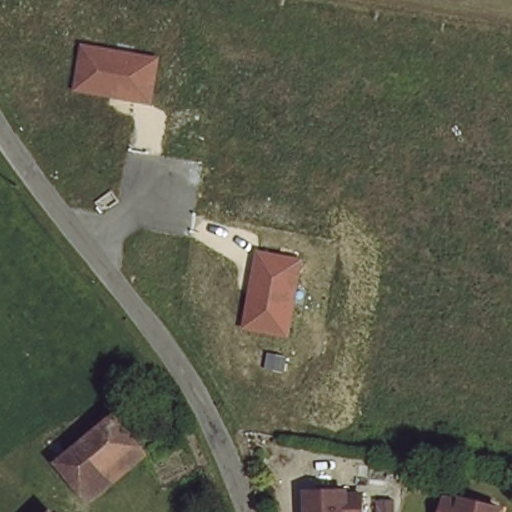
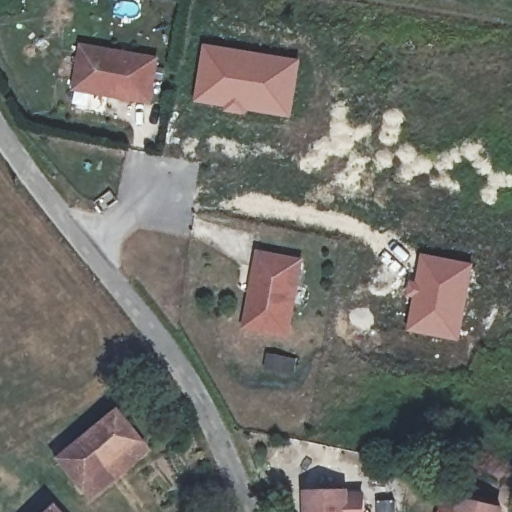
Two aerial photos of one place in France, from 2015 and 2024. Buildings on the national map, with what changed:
new [(203,42),(302,59),(292,118),(247,111),(247,115),(193,102),(203,42)]
unchanged [(74,86),(81,44),(113,50),(130,53),(155,57),(147,99),(114,93),(105,92),(74,86)]
new [(411,298),(404,296),(407,279),(415,280),(419,252),(475,263),(459,342),(404,331),(411,298)]
unchanged [(282,335),(240,327),(247,295),(249,286),(255,253),(297,262),(292,287),(289,304),(282,335)]
unchanged [(50,463),(114,412),(150,456),(128,473),(121,466),(80,501),(72,491),(50,463)]
unchanged [(342,489),(357,488),(358,512),(303,512),(302,486),(342,485),(342,489)]
unchanged [(442,512),(446,496),(462,500),(462,496),(502,506),(500,512),(442,512)]
unchanged [(62,512),(49,512),(56,505),(62,512)]

